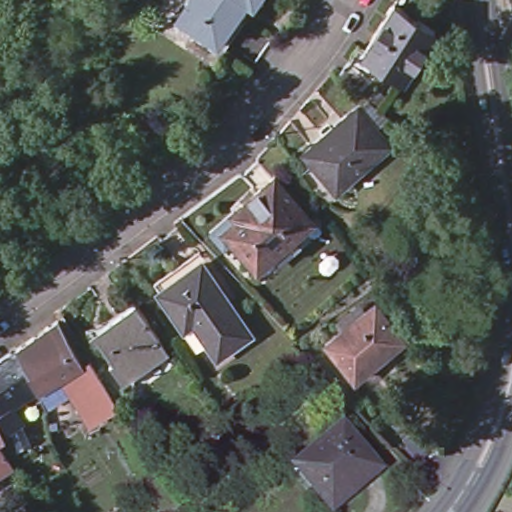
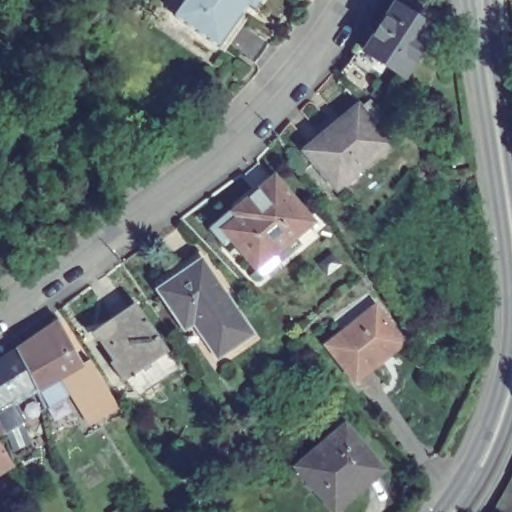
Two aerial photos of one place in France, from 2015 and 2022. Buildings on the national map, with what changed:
unchanged [(256,8),(250,3),(220,45),(175,13),(184,0),(262,0),(256,8)]
unchanged [(370,49),(401,1),(402,0),(434,0),(451,10),(442,26),(410,74),(382,56),(377,64),(376,64),(373,68),(362,61),(359,63),(378,79),(369,91),(346,72),(356,60),(365,46),(370,49)]
unchanged [(367,170),(362,164),(337,184),(311,152),(365,108),(397,146),(367,170)]
unchanged [(263,266),(237,234),(231,238),(220,225),(280,175),(318,219),(263,266)]
unchanged [(220,359),(195,324),(186,330),(155,287),(179,270),(195,258),(201,265),(252,336),(220,359)]
unchanged [(405,344),(355,382),(327,345),(377,307),(405,344)]
unchanged [(127,382),(97,340),(112,329),(110,327),(138,308),(170,352),(127,382)]
unchanged [(54,322),(77,366),(60,377),(35,392),(14,350),(54,322)]
unchanged [(35,392),(32,393),(0,414),(0,359),(14,350),(35,392)]
unchanged [(90,426),(60,377),(77,366),(83,362),(97,383),(100,383),(116,408),(90,426)]
unchanged [(386,467),(335,510),(297,464),(347,422),(386,467)]
unchanged [(7,435),(17,455),(9,459),(1,440),(0,441),(0,437),(0,438),(7,435)]
unchanged [(0,452),(9,466),(0,471),(0,452)]

